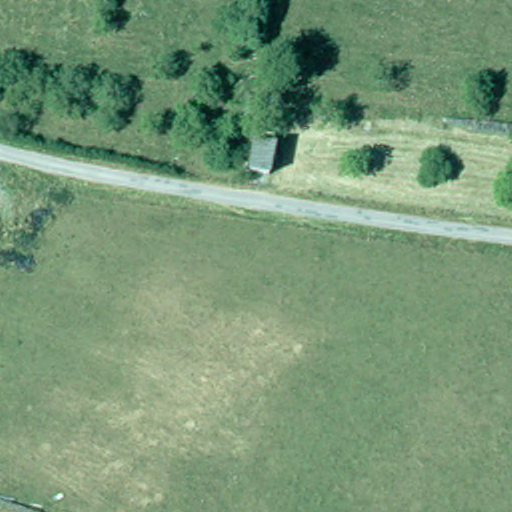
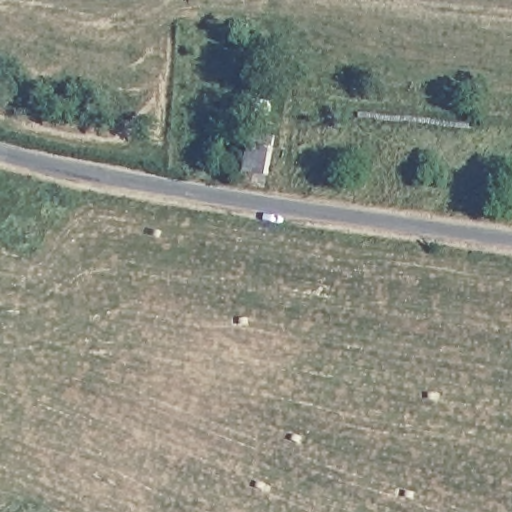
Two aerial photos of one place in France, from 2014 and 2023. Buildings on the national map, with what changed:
unchanged [(235,166),(244,131),(245,127),(267,133),(258,171),(235,166)]

